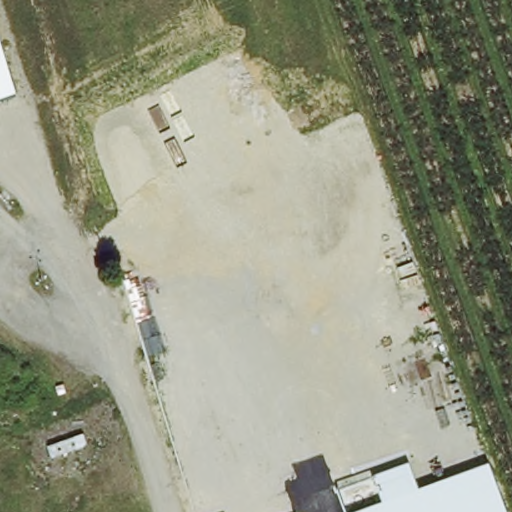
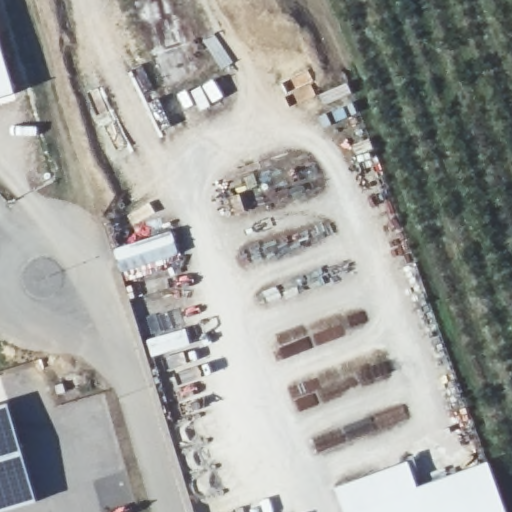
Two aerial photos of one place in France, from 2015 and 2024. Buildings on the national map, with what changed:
unchanged [(0,98),(0,45),(15,94),(0,98)]
new [(171,231),(179,254),(171,268),(126,283),(115,250),(171,231)]
unchanged [(54,368),(57,375),(50,378),(47,370),(54,368)]
new [(38,503),(9,512),(0,512),(0,406),(7,404),(38,503)]
unchanged [(383,502),(373,476),(409,464),(417,489),(488,464),(506,512),(355,512),(383,502)]

